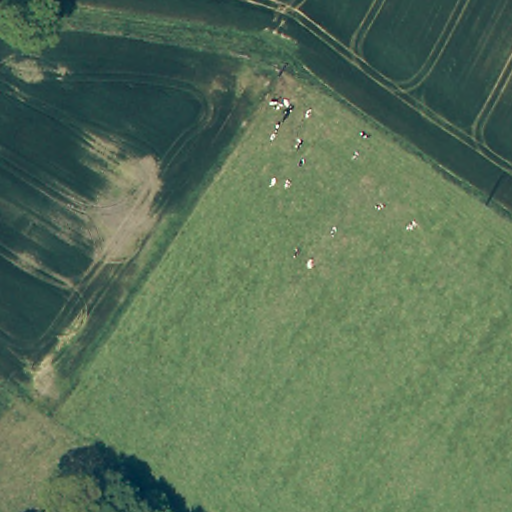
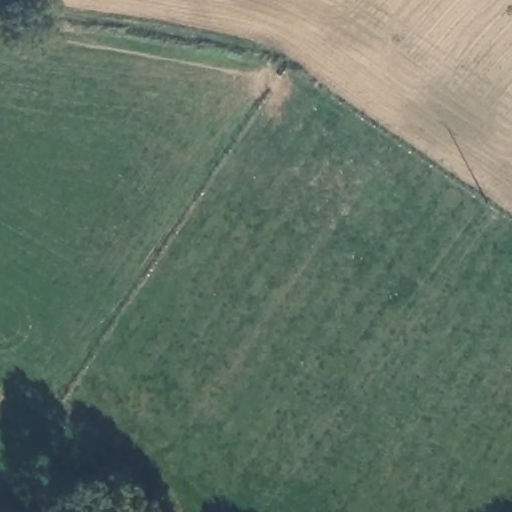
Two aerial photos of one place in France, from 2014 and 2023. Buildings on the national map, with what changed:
[]

